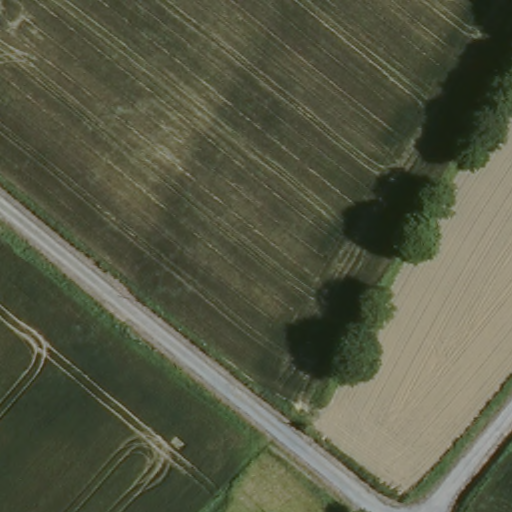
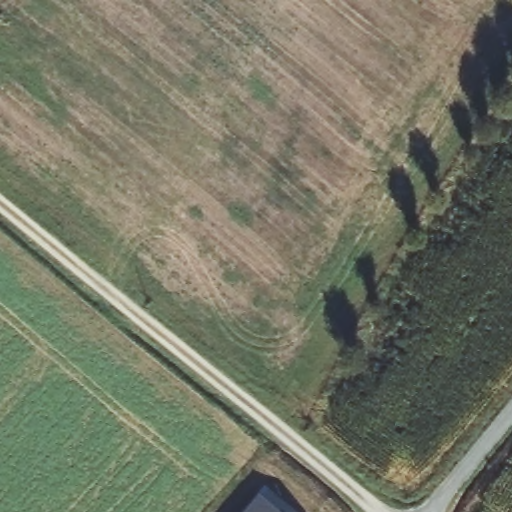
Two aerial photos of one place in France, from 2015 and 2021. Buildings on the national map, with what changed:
new [(258,491),(283,512),(241,512),(258,491)]

